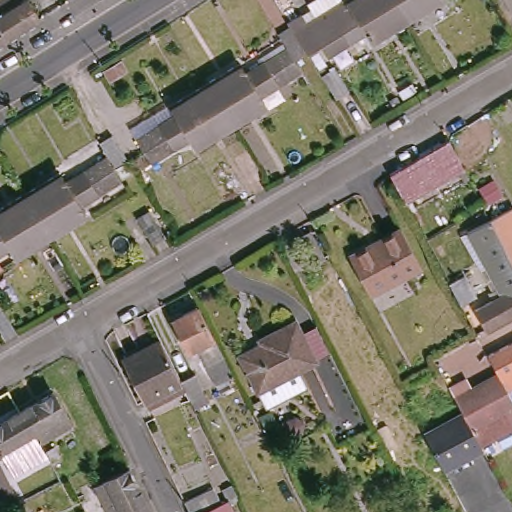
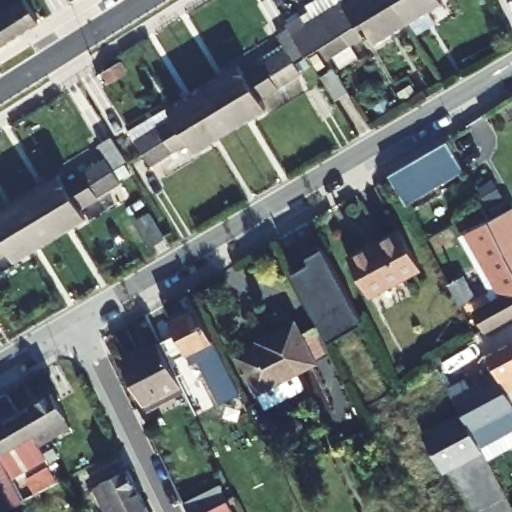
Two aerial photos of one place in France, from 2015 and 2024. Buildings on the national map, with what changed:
unchanged [(26,0),(31,0),(43,20),(11,41),(0,23),(0,0),(9,0),(14,7),(26,0)]
unchanged [(283,17),(298,9),(303,18),(332,0),(382,0),(314,41),(301,49),(286,21),(283,17)]
unchanged [(368,37),(362,27),(321,52),(314,41),(382,0),(392,0),(403,17),(368,37)]
unchanged [(392,0),(431,0),(403,17),(392,0)]
unchanged [(233,59),(239,69),(282,44),(273,29),(286,21),(301,49),(213,102),(200,80),(233,59)]
unchanged [(11,41),(0,48),(0,23),(11,41)]
unchanged [(328,62),(341,86),(329,94),(317,74),(304,82),(296,67),(254,92),(261,103),(226,124),(213,102),(301,49),(314,70),(328,62)]
unchanged [(130,136),(171,111),(166,100),(200,80),(213,102),(138,148),(130,136)]
unchanged [(226,124),(192,145),(186,136),(144,160),(138,148),(213,102),(226,124)]
unchanged [(120,175),(104,149),(116,141),(133,167),(120,175)]
unchanged [(463,170),(433,187),(431,185),(403,201),(392,180),(389,175),(388,174),(448,141),(463,170)]
demolished [(261,177),(248,186),(231,158),(244,150),(261,177)]
unchanged [(43,221),(30,200),(64,179),(69,189),(110,164),(118,176),(43,221)]
unchanged [(125,188),(84,212),(90,222),(56,243),(43,221),(118,176),(125,188)]
unchanged [(1,231),(0,229),(0,218),(30,200),(43,221),(0,247),(0,231),(1,231)]
unchanged [(512,210),(512,264),(505,251),(489,219),(511,207),(512,210)]
unchanged [(163,237),(151,244),(136,219),(149,212),(163,237)]
unchanged [(501,293),(466,230),(489,219),(505,251),(512,264),(512,315),(485,331),(473,308),(501,293)]
unchanged [(56,243),(22,264),(15,254),(0,263),(0,247),(43,221),(56,243)]
demolished [(324,254),(311,262),(296,233),(309,227),(324,254)]
unchanged [(400,230),(421,267),(391,283),(370,245),(400,230)]
demolished [(306,260),(294,266),(281,242),(293,235),(306,260)]
unchanged [(370,245),(391,283),(369,296),(348,257),(370,245)]
new [(291,282),(309,273),(304,266),(323,257),(359,323),(323,342),(291,282)]
unchanged [(450,289),(448,284),(464,275),(475,297),(459,306),(450,289)]
unchanged [(187,353),(170,320),(196,306),(233,377),(213,386),(195,349),(187,353)]
unchanged [(266,410),(256,391),(238,354),(258,343),(256,340),(295,320),(316,361),(299,370),(308,387),(266,410)]
unchanged [(203,392),(208,402),(193,410),(179,383),(143,402),(123,358),(158,341),(178,381),(193,374),(203,392)]
unchanged [(512,390),(507,393),(496,372),(487,355),(512,341),(512,390)]
unchanged [(462,413),(448,387),(461,380),(466,388),(496,372),(507,393),(511,400),(512,400),(512,429),(480,447),(462,413)]
unchanged [(51,393),(65,417),(63,417),(69,427),(36,446),(18,412),(51,393)]
unchanged [(0,454),(0,423),(18,412),(36,446),(43,457),(13,475),(0,454)]
unchanged [(443,470),(424,435),(462,413),(480,447),(481,448),(443,470)]
unchanged [(96,476),(131,459),(148,493),(113,510),(96,476)]
unchanged [(2,512),(0,512),(0,477),(14,506),(2,512)]
unchanged [(157,512),(114,512),(113,510),(148,493),(157,512)]
unchanged [(193,511),(221,498),(228,512),(193,512),(193,511)]
unchanged [(238,510),(239,512),(233,512),(238,510)]

